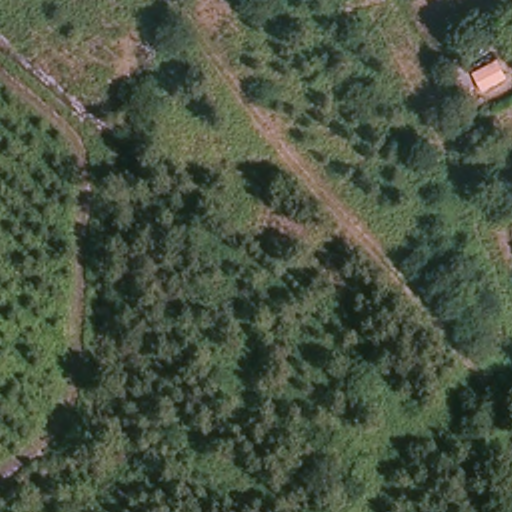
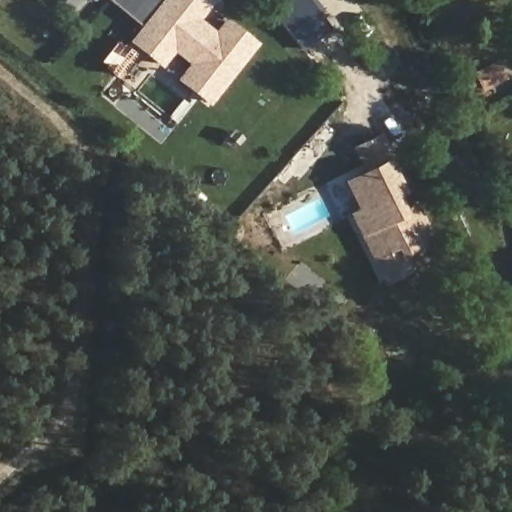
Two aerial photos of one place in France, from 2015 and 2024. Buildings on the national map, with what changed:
new [(154,24),(148,32),(137,45),(129,39),(138,26),(108,0),(163,0),(149,19),(154,24)]
new [(178,78),(190,62),(172,47),(160,63),(137,45),(154,24),(149,19),(164,0),(205,0),(207,2),(194,19),(214,35),(225,21),(254,42),(208,101),(178,78)]
new [(287,27),(267,0),(309,0),(315,10),(287,27)]
unchanged [(506,77),(486,91),(476,76),(498,66),(506,77)]
new [(391,165),(404,191),(396,195),(400,207),(415,201),(434,239),(396,257),(392,249),(370,260),(359,237),(347,212),(355,208),(341,180),(360,171),(349,147),(381,132),(395,162),(391,165)]

